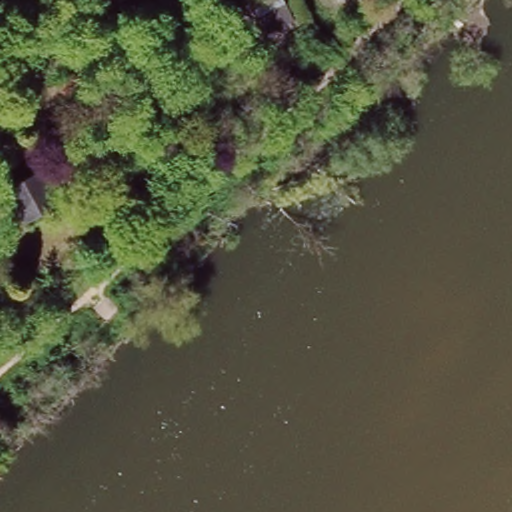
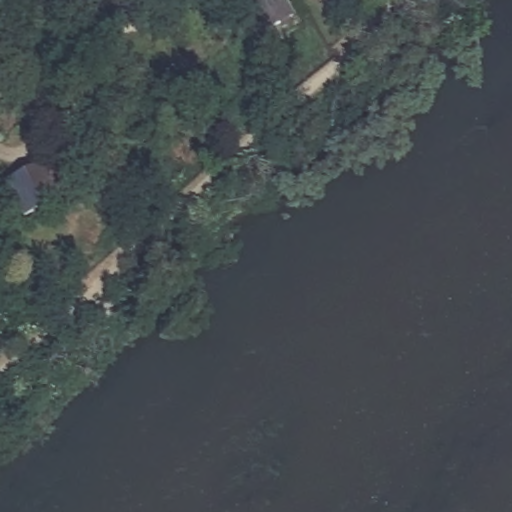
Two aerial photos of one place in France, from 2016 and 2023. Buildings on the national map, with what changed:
unchanged [(287,0),(297,24),(264,40),(249,9),(270,0),(287,0)]
unchanged [(67,98),(55,104),(47,90),(59,84),(67,98)]
unchanged [(4,184),(32,167),(51,198),(23,214),(4,184)]

